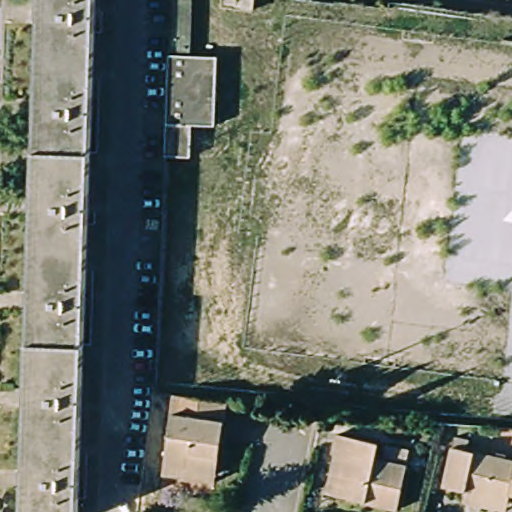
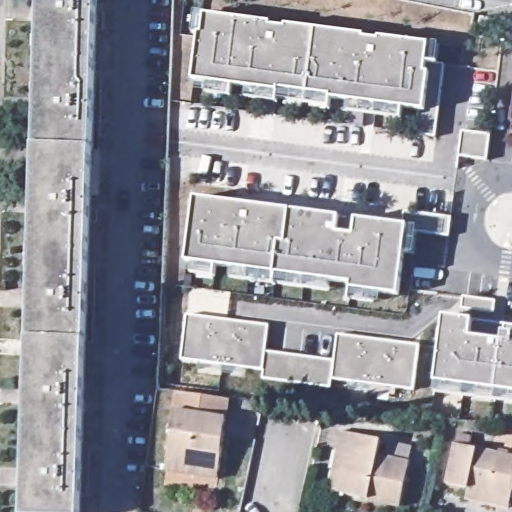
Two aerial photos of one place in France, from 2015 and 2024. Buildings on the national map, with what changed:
unchanged [(23,512),(41,0),(98,0),(80,512),(23,512)]
demolished [(194,48),(173,47),(175,0),(195,0),(194,48)]
demolished [(253,4),(226,1),(226,0),(253,0),(253,4)]
new [(418,134),(419,110),(190,79),(195,40),(197,15),(206,16),(430,45),(442,47),(439,64),(445,65),(435,136),(418,134)]
new [(479,18),(497,21),(495,32),(477,29),(479,18)]
demolished [(173,54),(221,55),(219,124),(196,124),(194,156),(169,155),(173,54)]
new [(232,87),(231,97),(205,94),(207,84),(232,87)]
new [(403,110),(401,120),(347,113),(348,102),(403,110)]
new [(457,158),(461,132),(489,136),(486,161),(457,158)]
new [(449,237),(407,230),(399,295),(350,289),(352,282),(186,262),(195,199),(357,220),(402,225),(403,212),(451,219),(449,237)]
new [(215,267),(214,277),(189,274),(190,265),(215,267)]
new [(328,282),(327,292),(230,279),(231,270),(328,282)]
new [(373,294),(372,303),(348,300),(349,290),(373,294)]
new [(495,301),(493,313),(461,309),(462,297),(495,301)]
new [(335,361),(339,335),(421,346),(415,391),(333,380),(331,390),(263,380),(264,371),(182,361),(188,315),(271,326),(268,353),(335,361)]
new [(435,381),(443,317),(472,320),(512,324),(512,391),(435,381)]
unchanged [(198,477),(172,473),(182,397),(186,397),(233,403),(224,472),(222,480),(198,477)]
unchanged [(339,450),(338,450),(343,430),(383,440),(380,455),(410,465),(399,506),(342,491),(330,489),(339,450)]
unchanged [(470,497),(472,488),(450,483),(458,444),(512,455),(512,503),(511,506),(470,497)]

